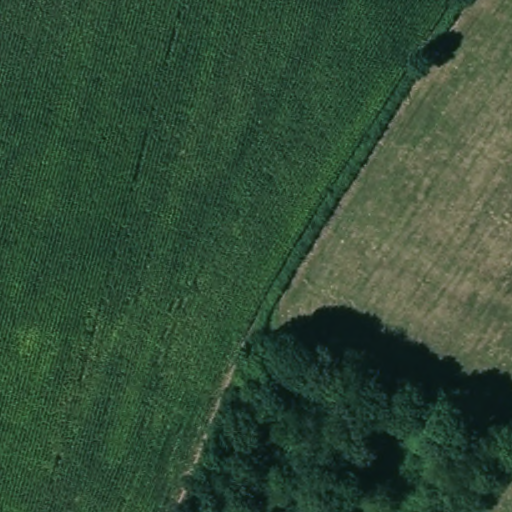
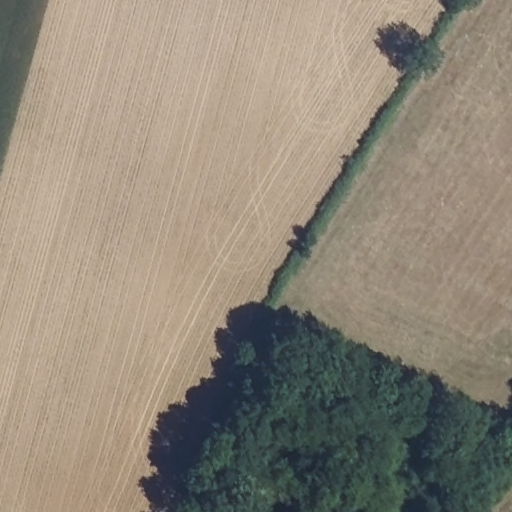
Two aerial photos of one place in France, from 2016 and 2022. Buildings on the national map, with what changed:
[]

